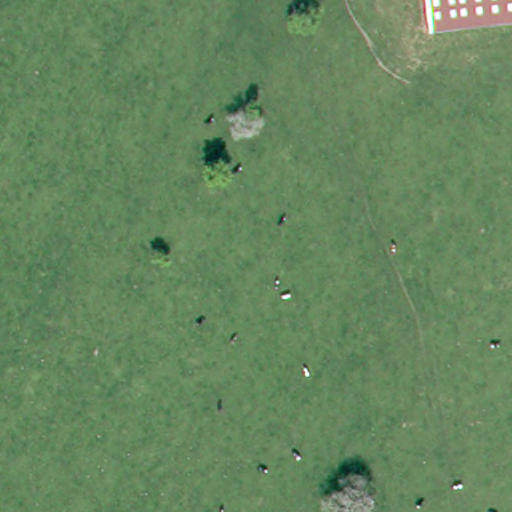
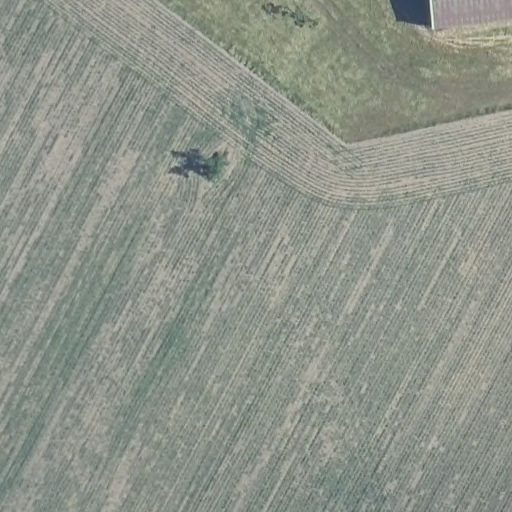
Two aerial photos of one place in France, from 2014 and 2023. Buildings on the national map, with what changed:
unchanged [(424,0),(512,0),(512,17),(428,27),(424,0)]

